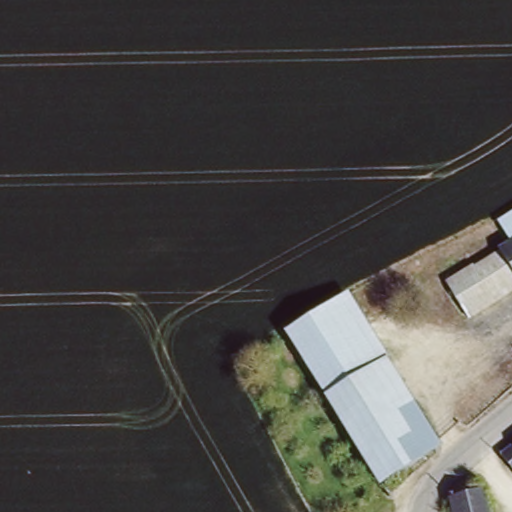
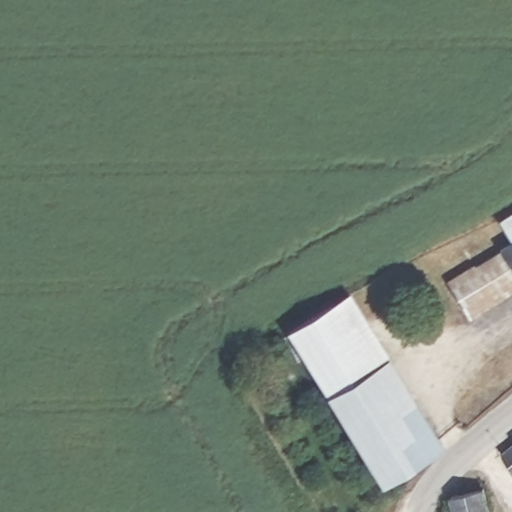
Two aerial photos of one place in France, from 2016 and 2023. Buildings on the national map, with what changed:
unchanged [(512,239),(497,217),(512,208),(512,239)]
unchanged [(478,267),(502,252),(499,247),(512,239),(512,291),(472,315),(449,278),(474,262),(478,267)]
unchanged [(288,334),(289,333),(349,298),(369,332),(311,368),(309,369),(288,334)]
unchanged [(311,368),(369,332),(388,362),(329,399),(309,369),(311,368)]
unchanged [(388,362),(441,450),(383,487),(329,399),(388,362)]
unchanged [(512,469),(499,456),(512,445),(512,469)]
unchanged [(483,488),(489,512),(454,512),(451,496),(483,488)]

